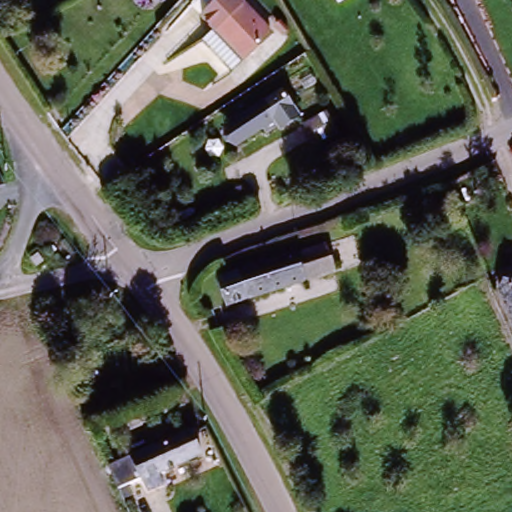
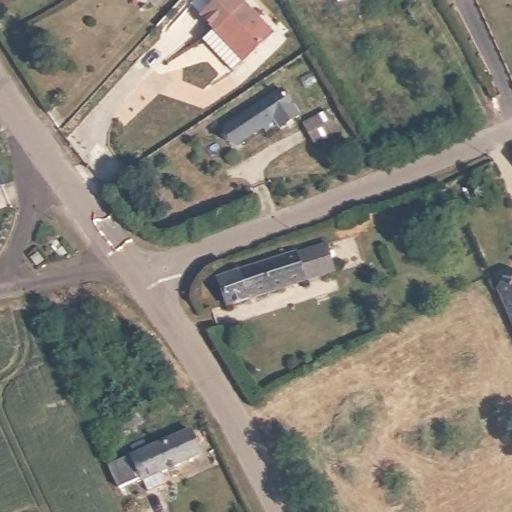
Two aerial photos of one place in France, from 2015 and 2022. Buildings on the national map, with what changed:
unchanged [(217,26),(205,13),(219,0),(240,0),(242,3),(273,35),(248,59),(247,58),(233,71),(203,39),(217,26)]
unchanged [(335,0),(336,0),(335,1),(335,0)]
unchanged [(255,131),(232,146),(220,129),(254,105),(271,128),(259,136),(255,131)]
unchanged [(310,124),(333,113),(342,134),(319,144),(310,124)]
unchanged [(3,184),(0,185),(0,178),(3,184)]
unchanged [(370,228),(373,237),(363,240),(366,251),(331,263),(333,271),(305,279),(297,251),(370,228)]
unchanged [(305,279),(225,304),(217,276),(297,251),(305,279)]
unchanged [(512,329),(496,294),(512,287),(512,329)]
unchanged [(106,471),(187,433),(197,456),(143,482),(139,479),(115,490),(106,471)]

